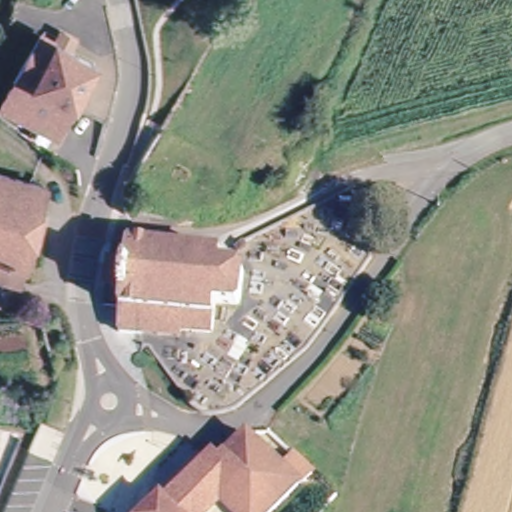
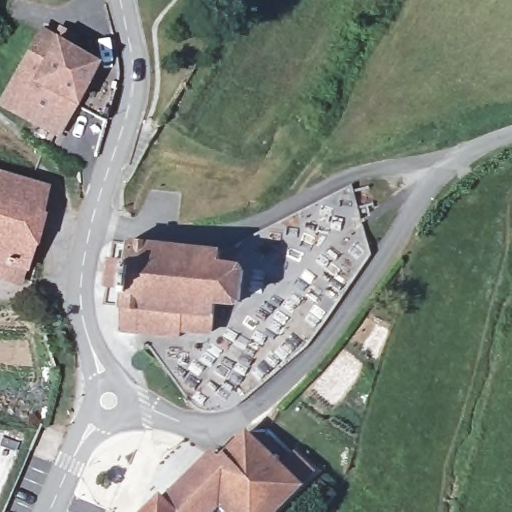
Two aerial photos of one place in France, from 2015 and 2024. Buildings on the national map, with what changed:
unchanged [(0,90),(32,26),(48,34),(53,26),(66,33),(62,41),(89,55),(53,127),(0,99),(0,90)]
unchanged [(0,170),(40,183),(17,263),(28,278),(0,272),(0,170)]
unchanged [(186,310),(115,300),(98,297),(112,232),(216,249),(216,260),(231,261),(246,262),(243,301),(212,299),(209,330),(184,327),(186,310)]
unchanged [(112,328),(115,300),(186,310),(184,327),(184,337),(139,331),(112,328)]
unchanged [(213,459),(226,447),(247,427),(285,467),(299,454),(315,471),(293,496),(303,506),(298,512),(142,512),(204,454),(213,459)]

